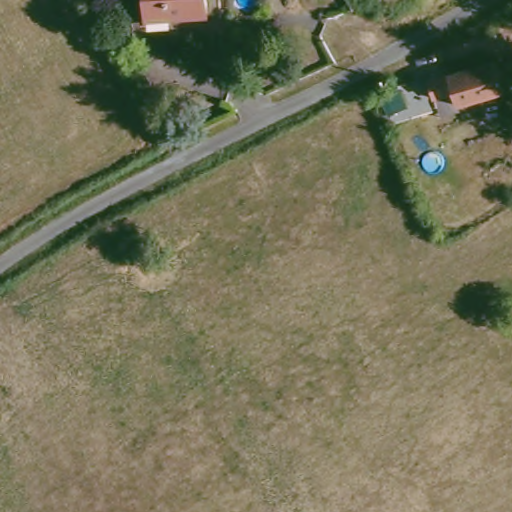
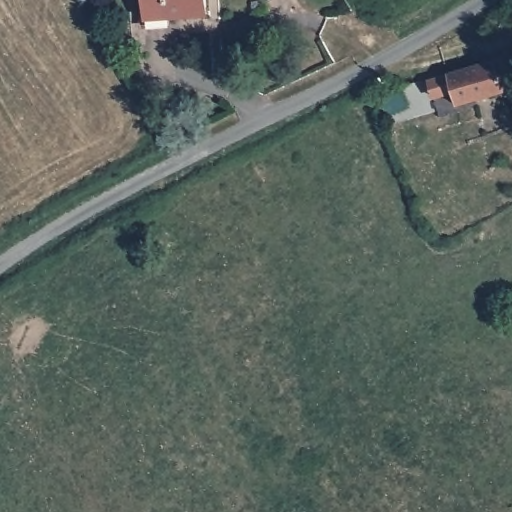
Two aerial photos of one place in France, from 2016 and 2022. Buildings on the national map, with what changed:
unchanged [(143,18),(143,0),(199,0),(200,19),(143,18)]
unchanged [(496,65),(498,73),(501,89),(502,94),(453,106),(448,76),(496,65)]
unchanged [(407,107),(387,112),(381,89),(401,85),(407,107)]

